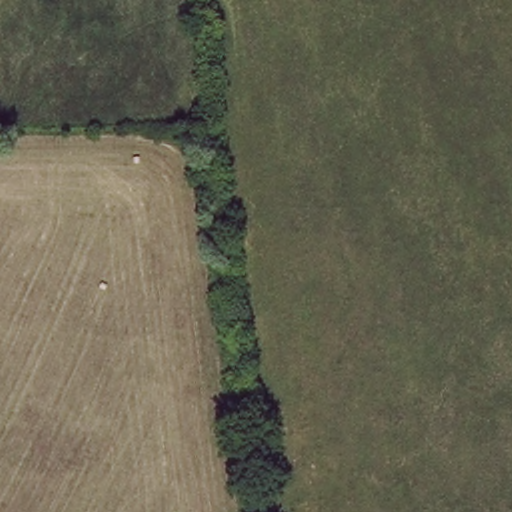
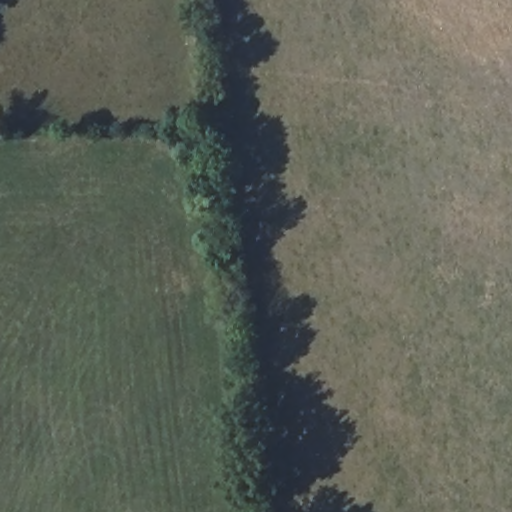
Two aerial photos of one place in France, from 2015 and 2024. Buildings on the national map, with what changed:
[]

